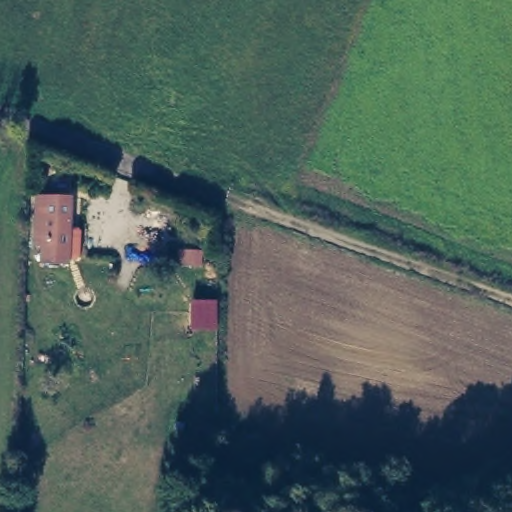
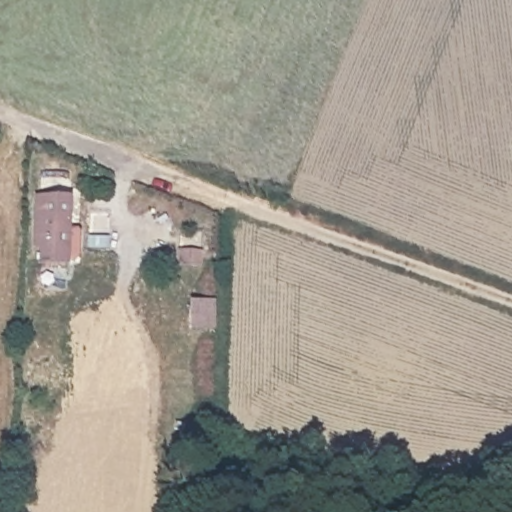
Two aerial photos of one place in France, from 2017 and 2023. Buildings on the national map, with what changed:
unchanged [(43,220),(43,189),(73,190),(70,250),(50,249),(50,234),(42,233),(43,220)]
unchanged [(217,300),(218,330),(190,331),(191,300),(217,300)]

